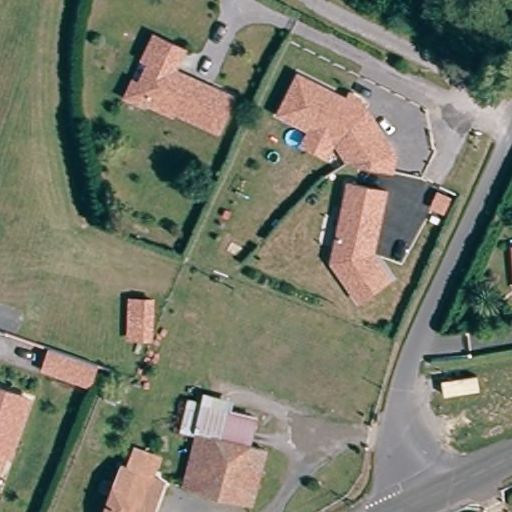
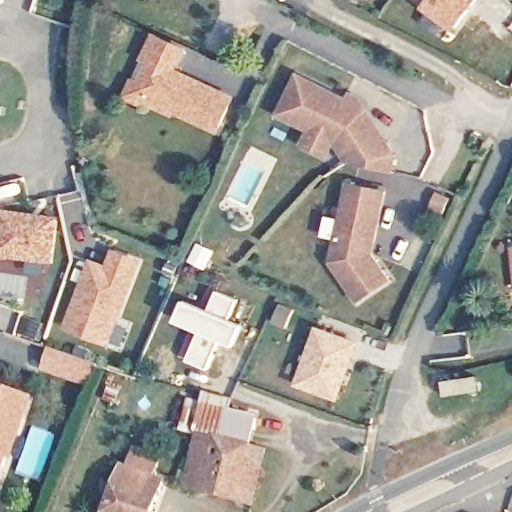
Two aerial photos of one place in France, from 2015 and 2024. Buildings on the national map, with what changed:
new [(459,32),(425,7),(416,0),(482,0),(459,32)]
unchanged [(120,87),(126,72),(132,74),(135,67),(143,51),(136,47),(146,25),(176,38),(168,55),(166,60),(225,87),(210,120),(136,86),(133,93),(120,87)]
unchanged [(280,109),(297,70),(363,100),(394,143),(391,160),(349,152),(338,135),(335,134),(328,148),(305,137),(312,124),(280,109)]
unchanged [(343,180),(381,187),(367,251),(386,275),(354,297),(327,258),(343,180)]
new [(55,261),(0,255),(0,215),(1,207),(61,216),(55,261)]
new [(108,262),(114,247),(144,259),(111,347),(64,328),(92,258),(108,262)]
unchanged [(511,251),(512,250),(512,258),(511,251)]
new [(203,330),(212,309),(220,290),(241,298),(232,318),(246,325),(238,344),(224,338),(211,368),(190,360),(203,330)]
demolished [(147,332),(127,332),(128,292),(148,292),(147,332)]
new [(319,330),(358,344),(338,398),(300,384),(319,330)]
unchanged [(95,384),(86,381),(74,377),(48,368),(55,349),(81,358),(93,362),(101,365),(95,384)]
new [(478,376),(480,391),(445,397),(442,382),(478,376)]
unchanged [(11,452),(0,479),(0,384),(32,397),(11,452)]
unchanged [(257,417),(249,446),(200,432),(178,425),(186,397),(257,417)]
unchanged [(264,451),(252,498),(185,481),(200,432),(249,446),(264,451)]
unchanged [(109,512),(123,472),(128,457),(152,466),(147,481),(159,485),(150,512),(109,512)]

